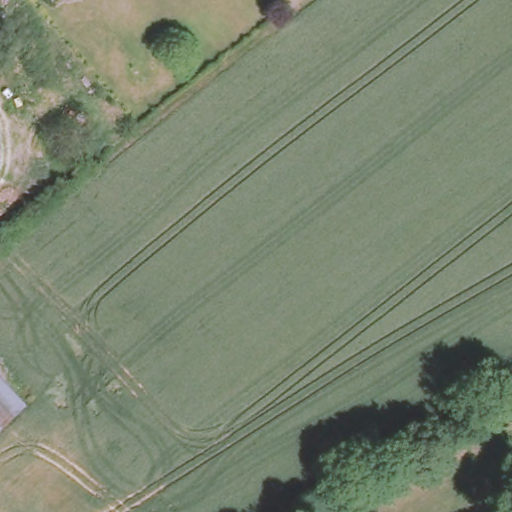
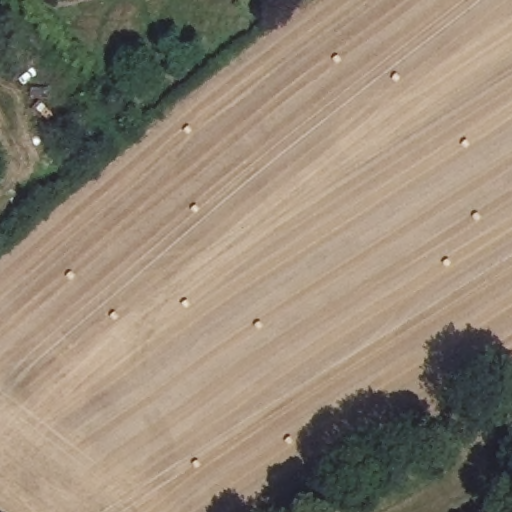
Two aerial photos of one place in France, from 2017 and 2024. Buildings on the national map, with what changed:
demolished [(0,422),(0,379),(21,401),(0,422)]

